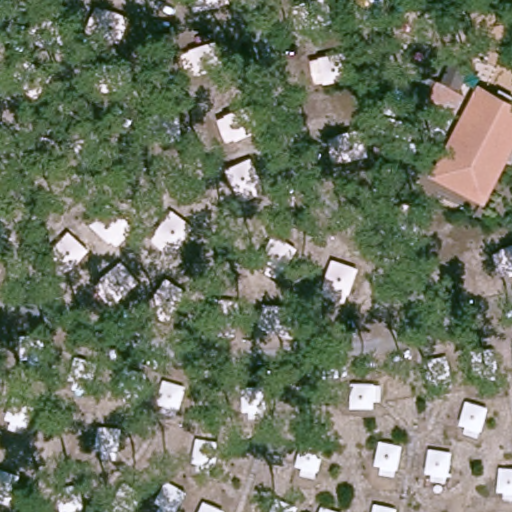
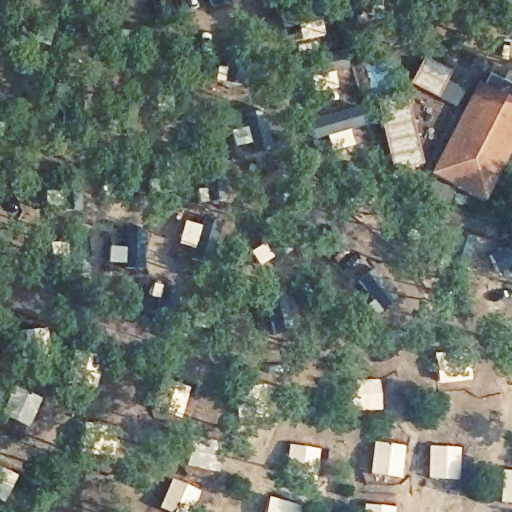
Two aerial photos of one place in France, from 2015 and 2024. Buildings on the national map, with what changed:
unchanged [(512,101),(512,149),(483,204),(430,174),(476,81),(512,101)]
new [(402,115),(413,113),(422,162),(394,167),(393,161),(390,162),(383,127),(395,125),(392,110),(379,113),(378,105),(400,101),(402,115)]

